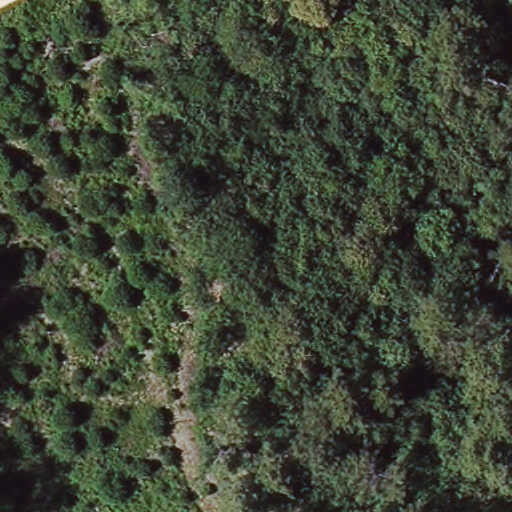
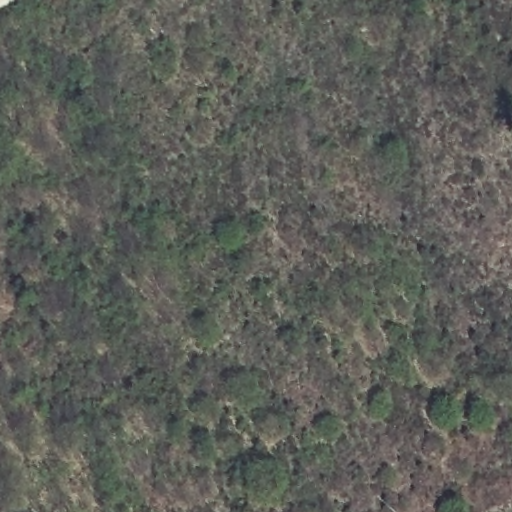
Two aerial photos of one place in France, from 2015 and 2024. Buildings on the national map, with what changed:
[]

